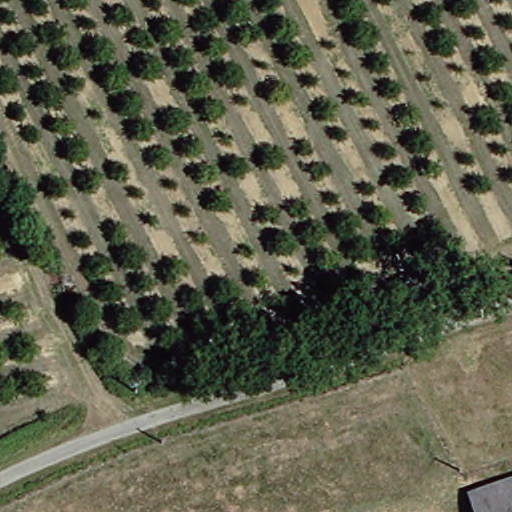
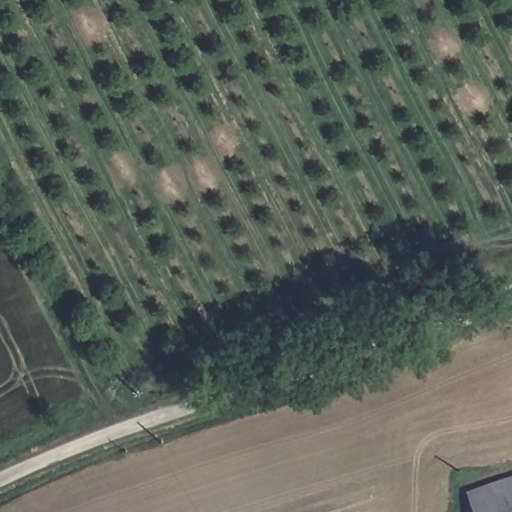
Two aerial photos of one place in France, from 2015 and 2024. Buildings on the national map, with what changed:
unchanged [(492,487),(512,481),(512,497),(494,503),(492,487)]
unchanged [(497,512),(470,512),(465,496),(492,487),(494,503),(497,512)]
unchanged [(512,512),(497,512),(494,503),(512,497),(512,512)]

